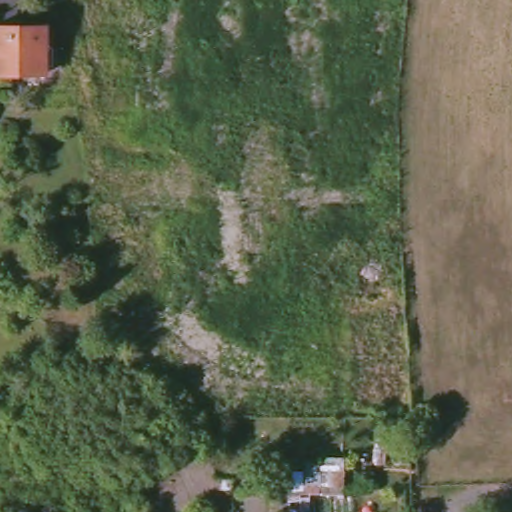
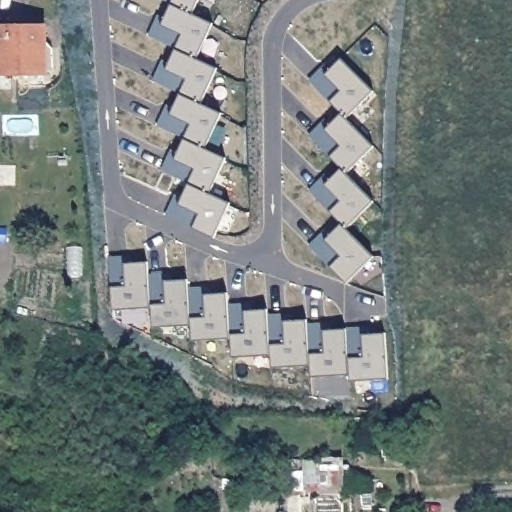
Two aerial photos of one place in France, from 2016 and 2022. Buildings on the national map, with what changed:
new [(192,15),(212,24),(197,60),(216,69),(201,105),(220,114),(205,150),(225,159),(210,195),(230,205),(215,239),(193,229),(165,217),(174,195),(182,198),(189,184),(161,171),(170,149),(179,152),(185,140),(157,125),(166,104),(175,109),(180,95),(152,81),(161,59),(170,64),(175,51),(149,36),(156,15),(165,19),(171,5),(162,0),(198,0),(192,15)]
unchanged [(0,27),(45,27),(46,74),(0,74),(0,27)]
new [(341,59),(373,92),(346,120),(372,148),(346,175),(373,201),(346,230),(372,257),(346,283),(331,267),(310,246),(325,230),(330,236),(341,225),(331,212),(309,191),(325,174),(331,180),(341,170),(331,157),(310,136),(325,120),(331,124),(341,115),(331,102),(310,81),(325,65),(332,68),(341,59)]
unchanged [(5,137),(5,126),(20,126),(19,137),(5,137)]
new [(387,379),(350,382),(349,375),(311,377),(310,366),(272,367),(270,355),(231,357),(230,340),(192,341),(191,326),(152,327),(150,308),(111,310),(110,287),(108,257),(125,257),(125,263),(147,262),(148,275),(165,274),(165,281),(187,280),(188,290),(205,288),(205,293),(227,292),(227,304),(245,303),(245,311),(267,310),(267,316),(284,315),(285,320),(307,319),(307,326),(323,323),(323,330),(346,330),(362,327),(363,335),(385,335),(387,379)]
unchanged [(161,399),(162,387),(183,389),(182,402),(161,399)]
unchanged [(303,458),(349,459),(349,488),(304,487),(303,458)]

